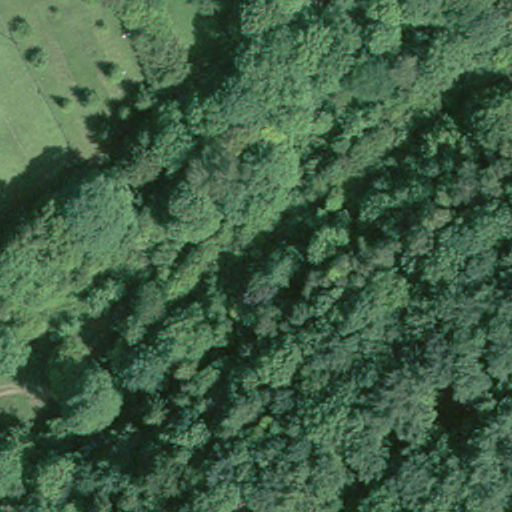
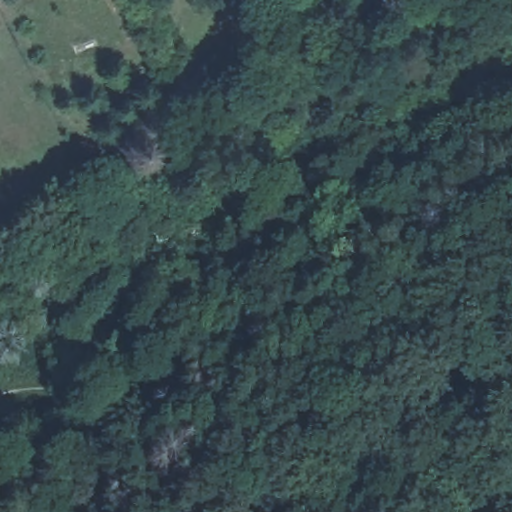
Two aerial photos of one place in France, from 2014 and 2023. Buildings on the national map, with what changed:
unchanged [(108,428),(119,445),(89,466),(78,449),(108,428)]

